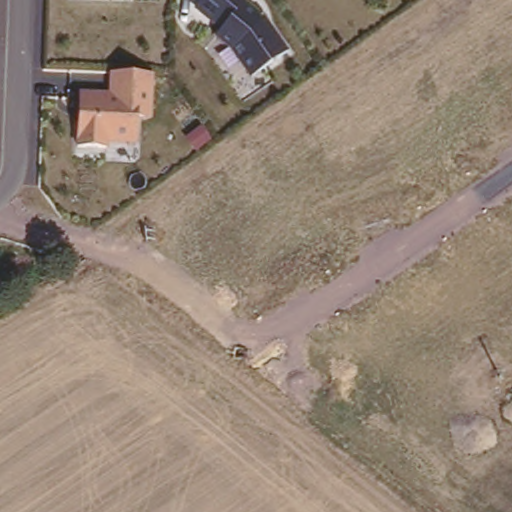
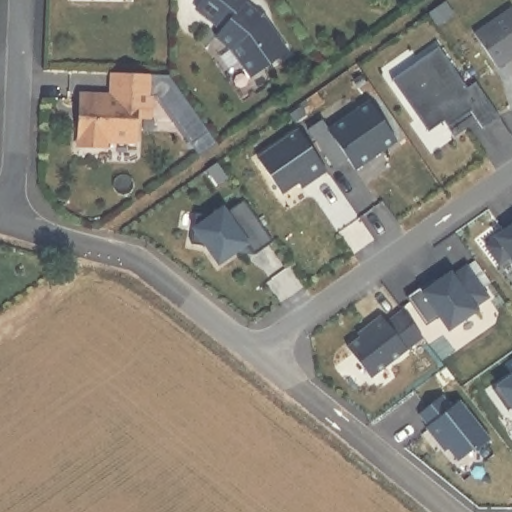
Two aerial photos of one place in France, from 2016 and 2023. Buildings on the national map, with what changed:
unchanged [(254,79),(237,56),(217,35),(221,30),(196,5),(199,0),(247,0),(257,10),(255,14),(287,60),(254,79)]
new [(507,7),(512,14),(512,55),(493,68),(469,32),(507,7)]
new [(460,115),(442,127),(438,121),(423,131),(387,79),(433,46),(462,87),(471,81),(495,116),(477,128),(463,107),(466,111),(460,115)]
unchanged [(82,144),(75,144),(77,95),(105,96),(106,71),(152,73),(151,120),(135,121),(134,144),(106,144),(105,153),(82,151),(82,144)]
new [(317,119),(324,129),(365,101),(392,140),(350,169),(342,158),(329,167),(303,129),(317,119)]
new [(321,169),(306,180),(302,175),(276,192),(252,158),(294,130),(321,169)]
new [(249,254),(241,243),(213,263),(201,246),(186,243),(191,212),(206,215),(217,207),(221,212),(239,199),(267,241),(249,254)]
new [(506,255),(494,263),(481,245),(499,232),(501,234),(508,228),(507,226),(512,222),(512,264),(506,255)]
new [(472,310),(443,330),(434,316),(421,325),(401,296),(415,286),(430,276),(432,281),(418,291),(446,271),(447,275),(462,265),(483,297),(470,306),(472,310)]
new [(366,377),(342,346),(366,328),(363,325),(376,315),(381,322),(397,310),(417,337),(366,377)]
new [(452,405),(458,400),(490,437),(458,462),(440,438),(437,440),(416,416),(442,395),(452,405)]

